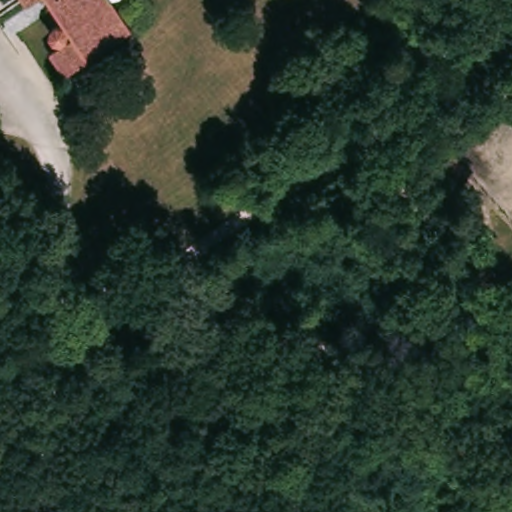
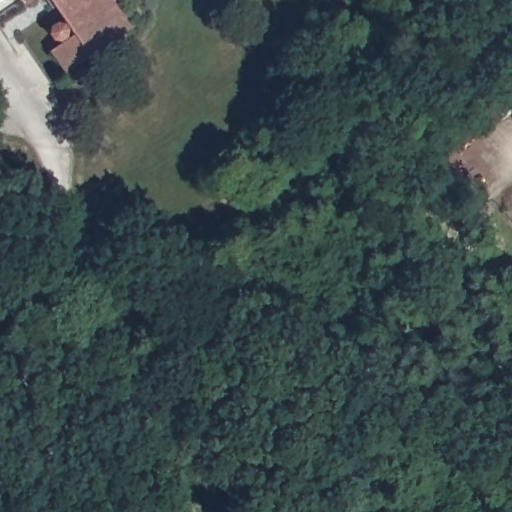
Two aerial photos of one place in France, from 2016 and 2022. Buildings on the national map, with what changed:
unchanged [(28,7),(22,0),(38,0),(28,7)]
unchanged [(131,27),(71,74),(55,51),(75,35),(70,31),(69,34),(66,37),(64,39),(61,39),(60,39),(57,38),(55,36),(54,34),(53,33),(53,31),(54,29),(55,27),(56,25),(59,24),(63,23),(48,0),(110,0),(131,27)]

